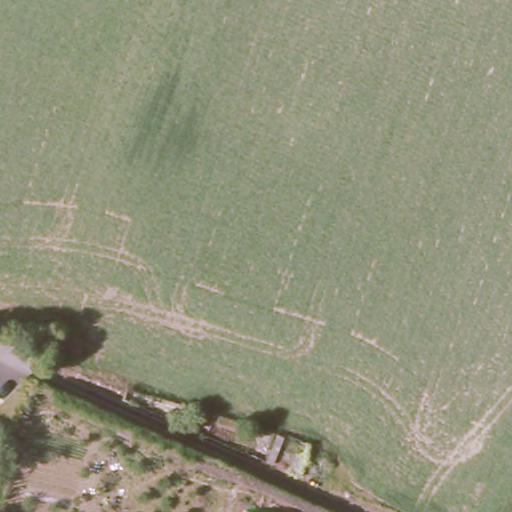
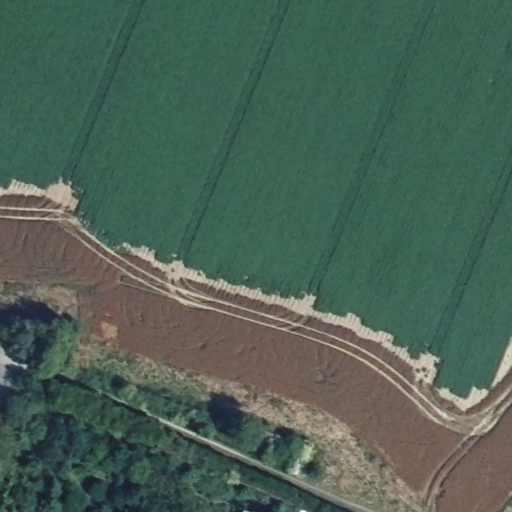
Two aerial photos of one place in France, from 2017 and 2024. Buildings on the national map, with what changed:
unchanged [(257,512),(245,512),(246,509),(257,512)]

